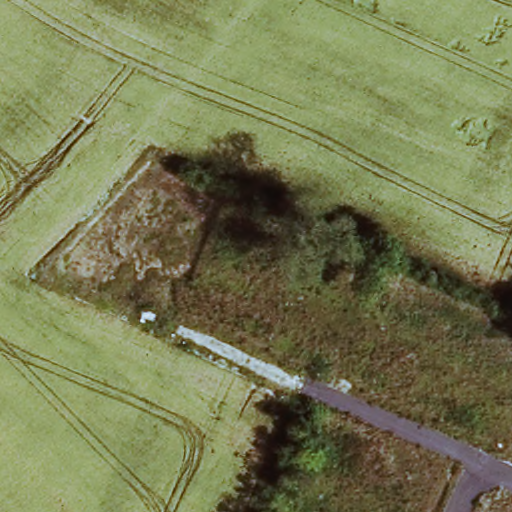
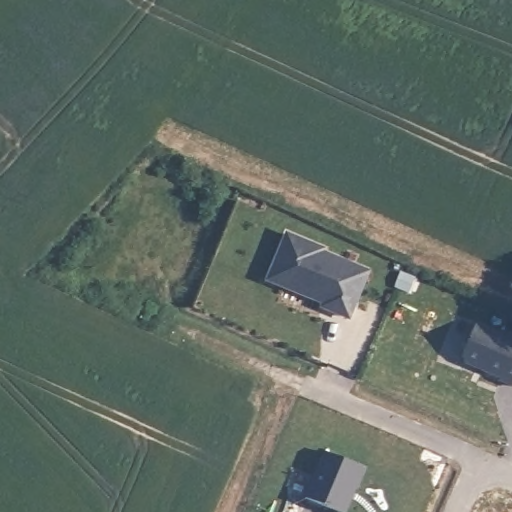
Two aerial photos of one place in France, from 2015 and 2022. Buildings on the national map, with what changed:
new [(304,295),(303,295),(267,280),(287,235),(323,250),(322,254),(367,274),(347,320),(331,312),(322,308),(324,303),(304,295)]
new [(477,326),(512,341),(512,388),(501,382),(502,380),(466,365),(464,358),(477,326)]
new [(366,468),(357,488),(356,487),(346,512),(340,512),(307,497),(327,451),(366,468)]

